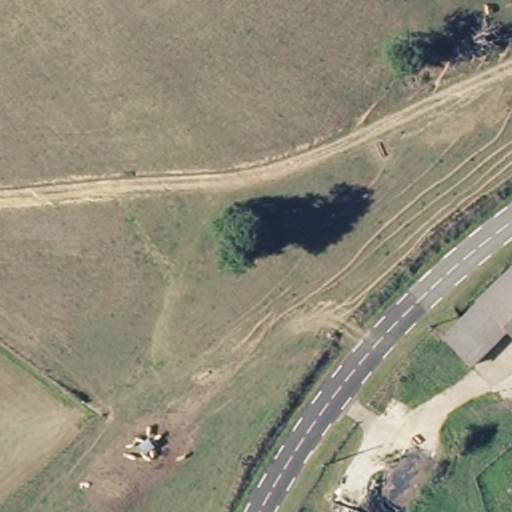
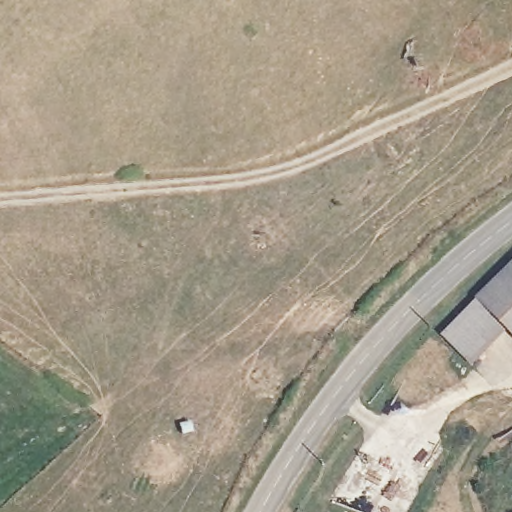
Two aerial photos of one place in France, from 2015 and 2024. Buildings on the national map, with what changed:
unchanged [(512,335),(505,328),(480,303),(512,271),(512,335)]
unchanged [(443,340),(480,303),(505,328),(471,363),(443,340)]

